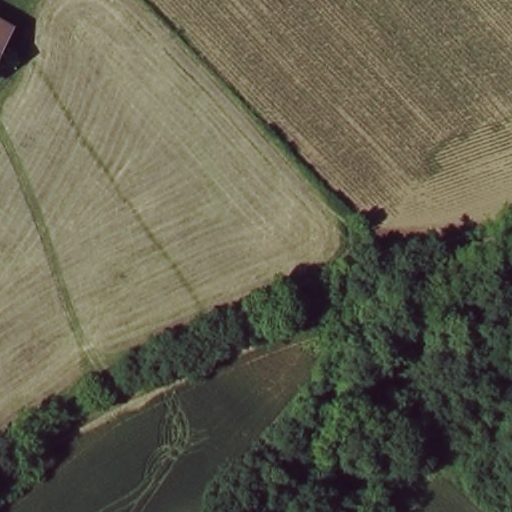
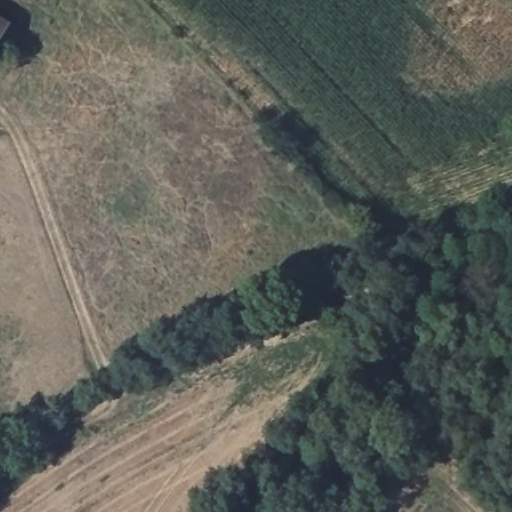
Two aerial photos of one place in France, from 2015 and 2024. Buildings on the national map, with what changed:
unchanged [(11,18),(0,38),(0,12),(11,18)]

